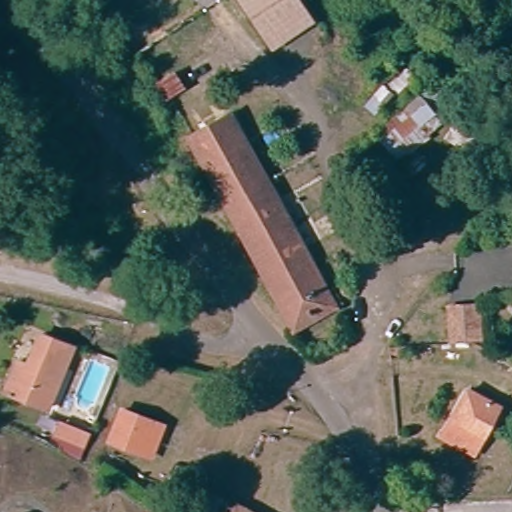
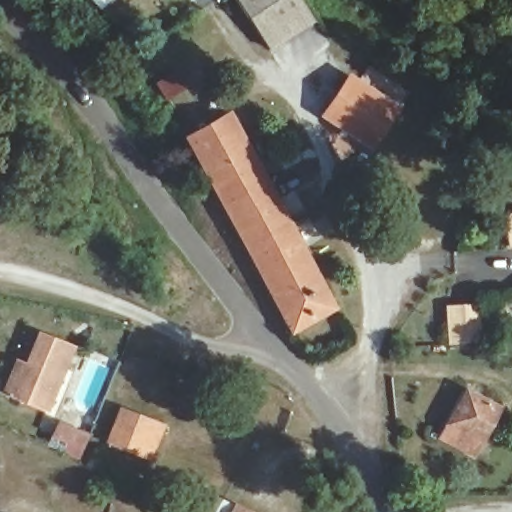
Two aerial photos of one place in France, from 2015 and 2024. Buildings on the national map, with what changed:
unchanged [(252,15),(242,0),(275,0),(252,15)]
unchanged [(273,46),(252,15),(275,0),(305,0),(317,17),(273,46)]
unchanged [(185,84),(170,94),(160,80),(175,70),(185,84)]
new [(350,72),(400,107),(375,147),(321,116),(350,72)]
demolished [(378,111),(366,101),(382,82),(394,92),(378,111)]
unchanged [(333,309),(290,333),(185,139),(228,115),(284,215),(333,309)]
new [(505,213),(512,212),(512,246),(508,247),(505,213)]
unchanged [(485,339),(475,339),(451,341),(450,305),(481,303),(485,339)]
unchanged [(50,406),(7,389),(20,358),(29,362),(41,331),(75,344),(50,406)]
unchanged [(478,453),(443,434),(470,387),(504,406),(478,453)]
unchanged [(138,455),(106,443),(119,412),(150,424),(160,428),(148,459),(138,455)]
unchanged [(84,455),(54,441),(62,420),(92,432),(84,455)]
unchanged [(199,505),(201,499),(190,493),(195,484),(224,498),(225,496),(255,512),(206,512),(207,509),(199,505)]

